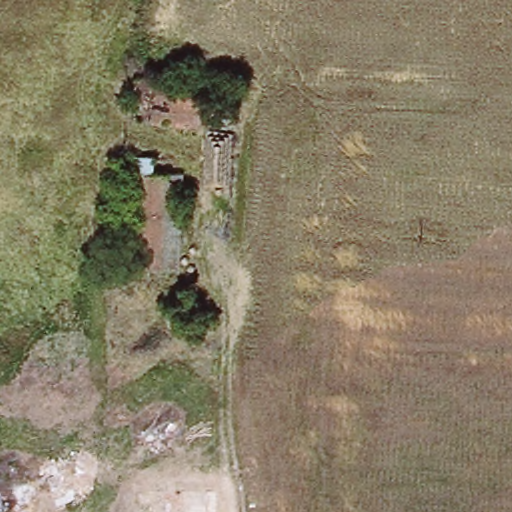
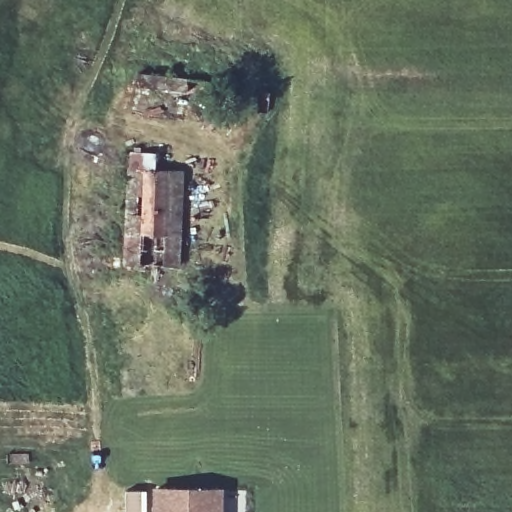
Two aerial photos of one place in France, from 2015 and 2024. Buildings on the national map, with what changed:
unchanged [(236,93),(233,129),(135,124),(136,86),(236,93)]
unchanged [(189,171),(184,270),(131,269),(135,169),(189,171)]
new [(223,488),(223,512),(152,512),(152,485),(223,488)]
demolished [(151,492),(207,493),(206,512),(151,512),(151,492)]

